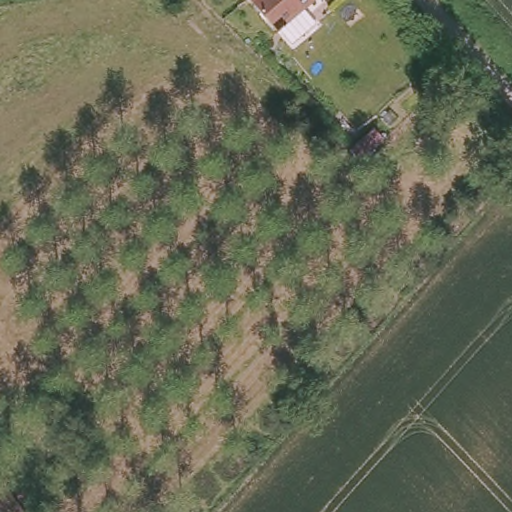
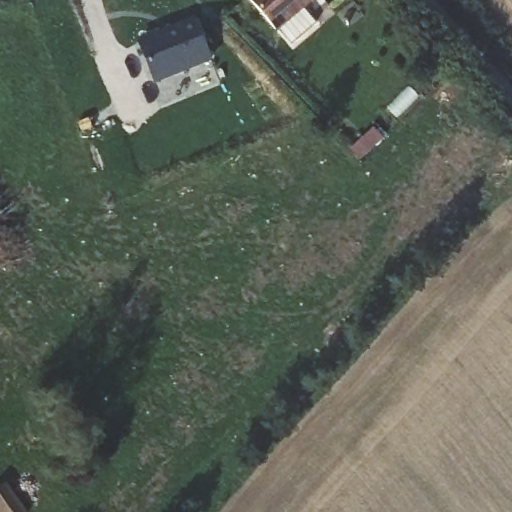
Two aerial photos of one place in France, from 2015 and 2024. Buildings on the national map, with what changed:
unchanged [(280,29),(253,0),(311,0),(280,29)]
new [(155,85),(137,41),(195,18),(212,61),(155,85)]

